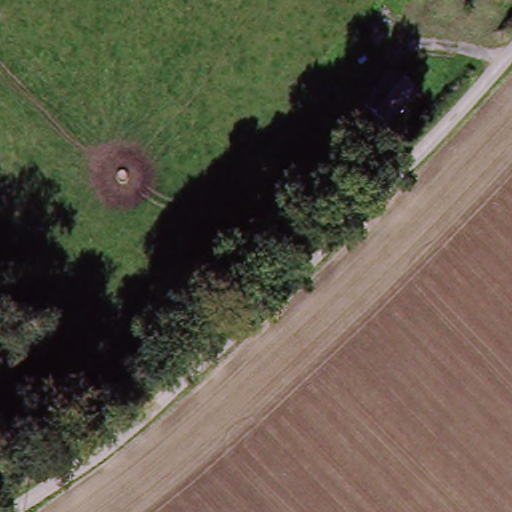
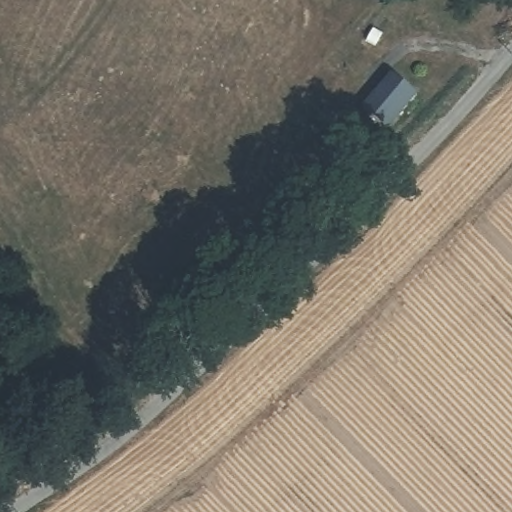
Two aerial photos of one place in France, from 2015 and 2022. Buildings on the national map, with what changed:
unchanged [(425,85),(397,115),(373,94),(402,65),(425,85)]

